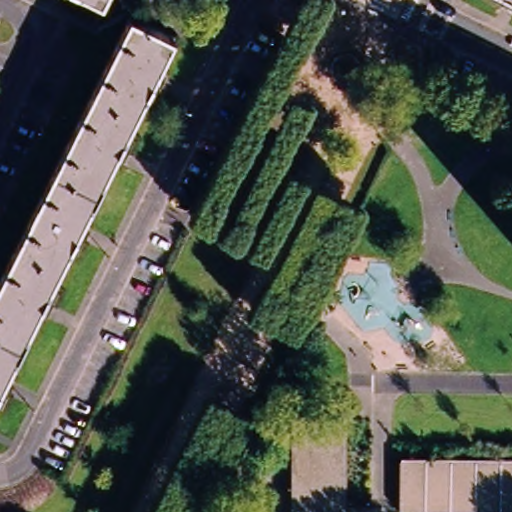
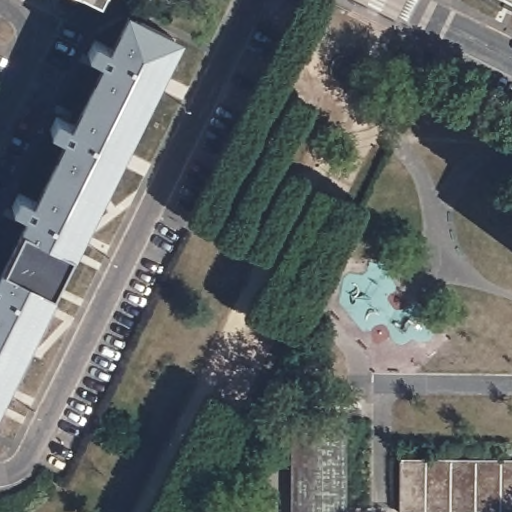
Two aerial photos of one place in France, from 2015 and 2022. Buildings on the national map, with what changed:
unchanged [(72,0),(76,0),(75,2),(72,0)]
unchanged [(99,2),(96,0),(100,0),(99,2)]
unchanged [(512,8),(495,0),(512,0),(512,8)]
unchanged [(0,406),(0,274),(127,16),(171,38),(155,70),(165,75),(151,101),(142,97),(124,134),(133,138),(120,164),(110,160),(79,223),(88,228),(75,254),(66,250),(48,285),(58,290),(43,318),(35,313),(3,376),(12,381),(0,406)]
unchanged [(345,417),(345,512),(290,512),(290,417),(345,417)]
unchanged [(512,461),(512,512),(398,512),(398,460),(512,461)]

